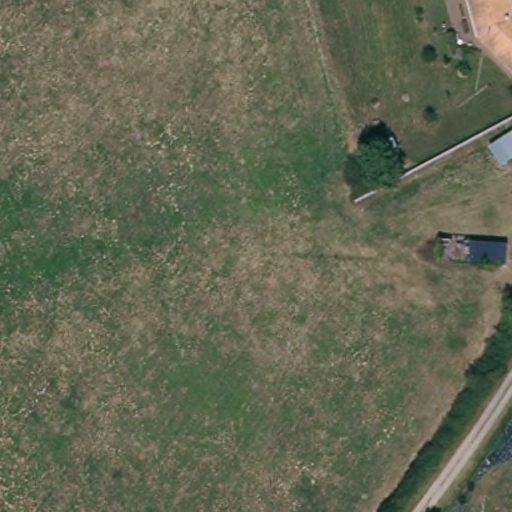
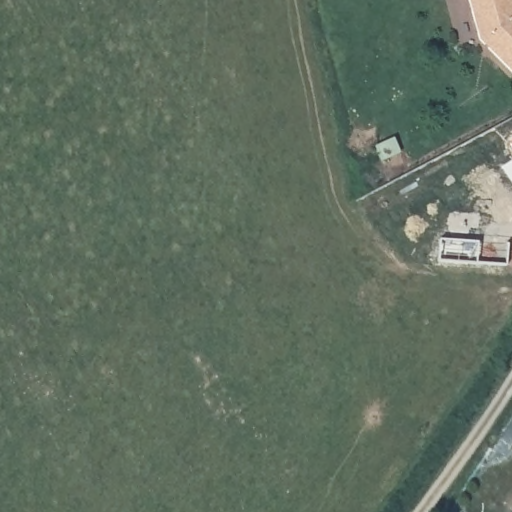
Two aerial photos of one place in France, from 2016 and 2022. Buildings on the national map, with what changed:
unchanged [(512,1),(512,74),(482,45),(469,0),(512,0),(512,1)]
unchanged [(507,243),(506,266),(437,263),(438,240),(507,243)]

